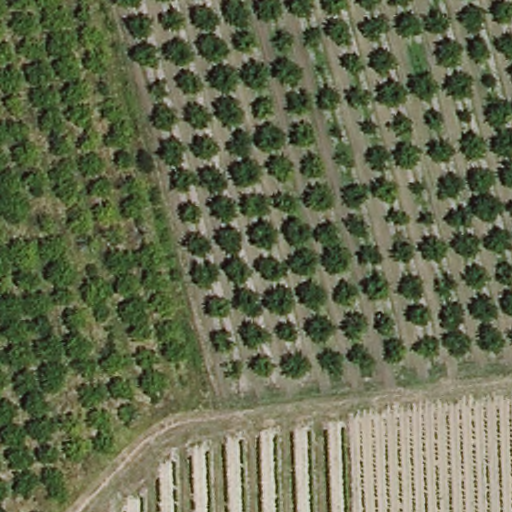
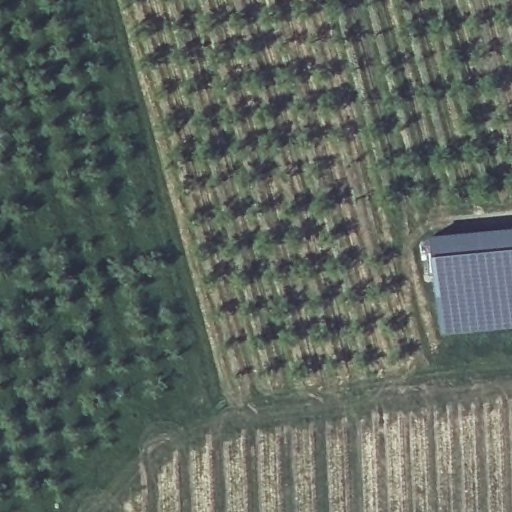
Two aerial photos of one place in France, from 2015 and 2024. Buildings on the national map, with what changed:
new [(439,228),(512,224),(512,242),(439,246),(439,228)]
new [(512,242),(512,322),(444,325),(439,246),(512,242)]

